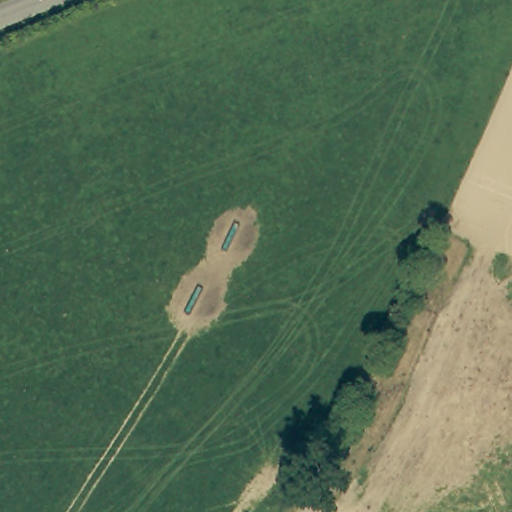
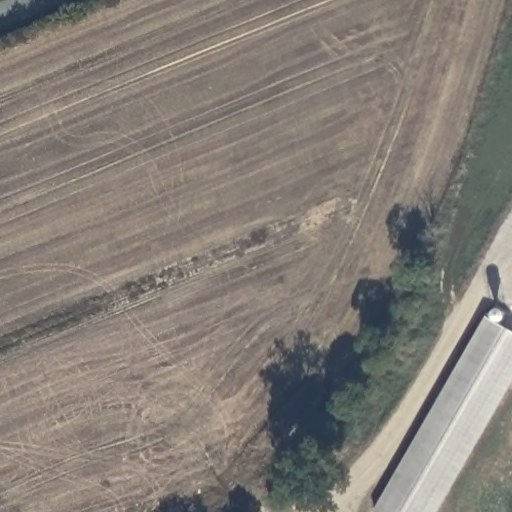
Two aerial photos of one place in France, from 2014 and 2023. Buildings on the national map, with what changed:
new [(501,310),(504,313),(503,317),(502,321),(499,321),(494,320),(491,316),(492,312),(496,310),(501,310)]
new [(486,317),(512,331),(512,383),(437,512),(374,512),(373,511),(486,317)]

